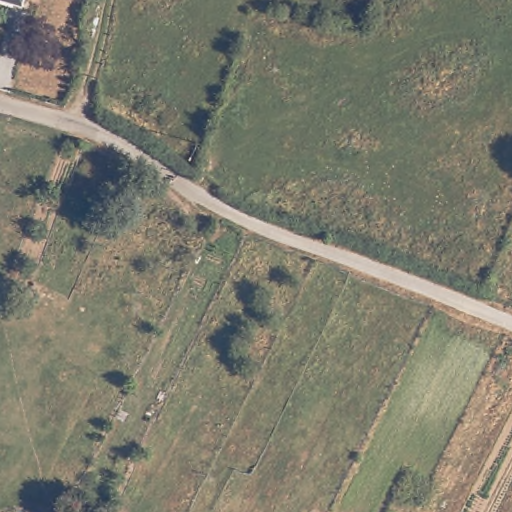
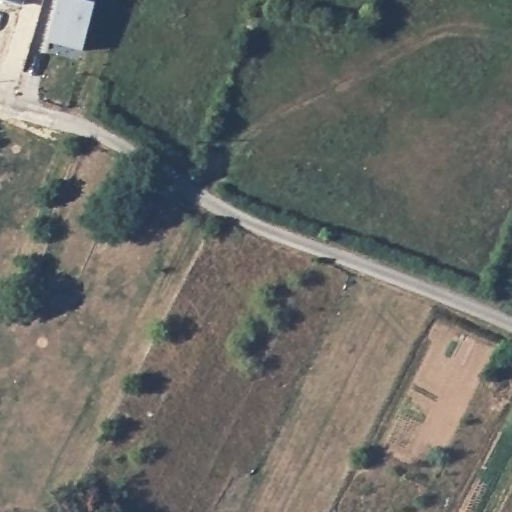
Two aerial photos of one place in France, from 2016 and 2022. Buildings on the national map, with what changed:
unchanged [(27,5),(6,0),(28,0),(27,5)]
new [(49,42),(59,0),(87,0),(96,2),(83,51),(49,42)]

